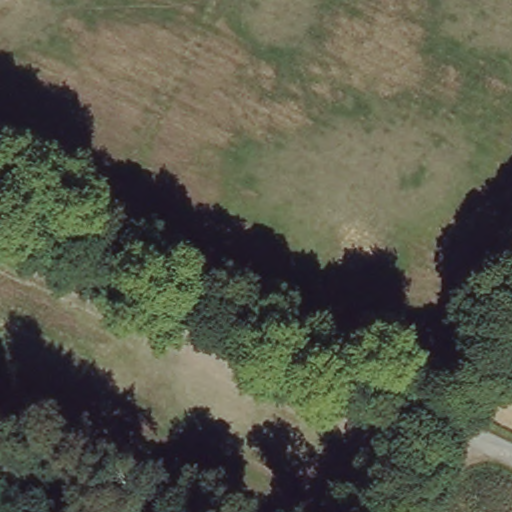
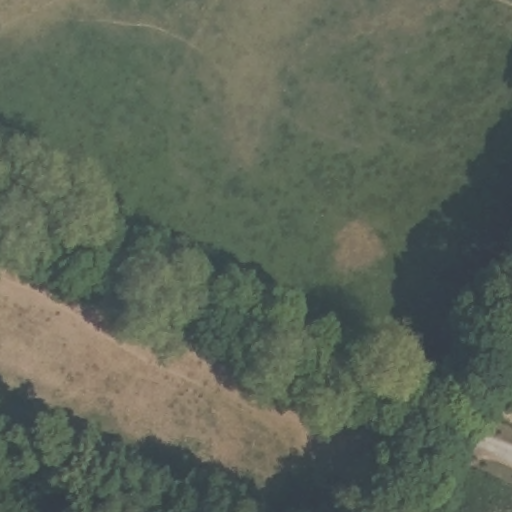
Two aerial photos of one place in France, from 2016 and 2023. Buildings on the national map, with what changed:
[]

